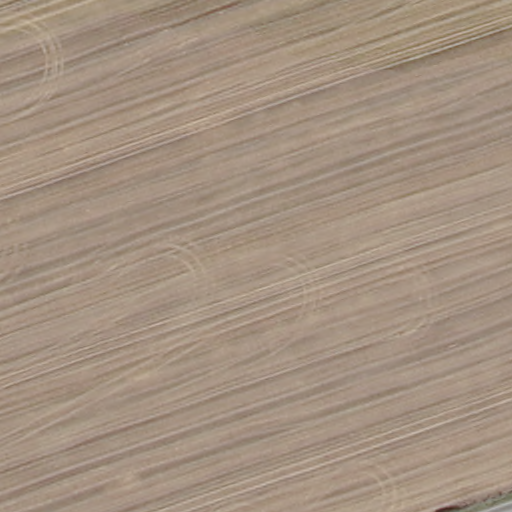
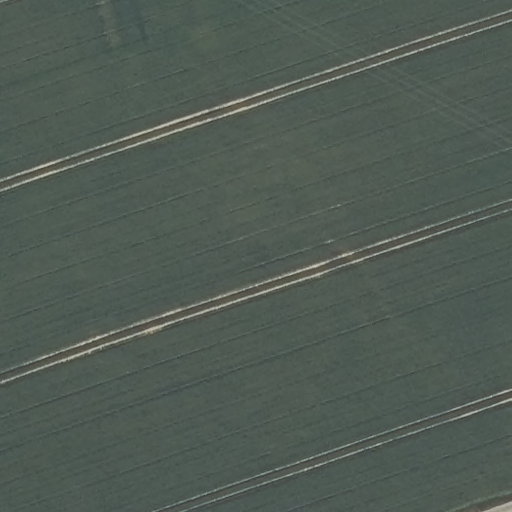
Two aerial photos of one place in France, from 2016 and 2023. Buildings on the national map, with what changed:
[]

